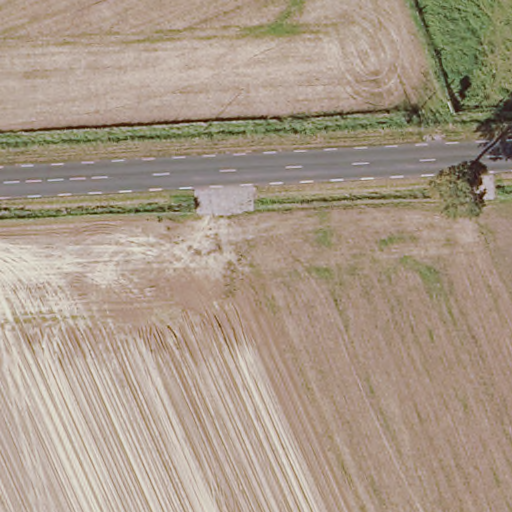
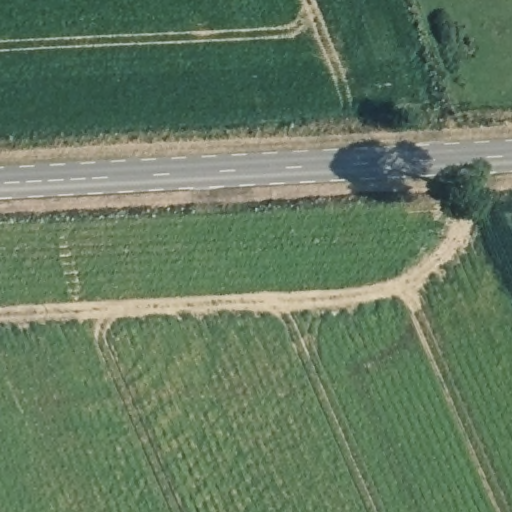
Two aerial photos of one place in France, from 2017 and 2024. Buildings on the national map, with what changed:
[]

